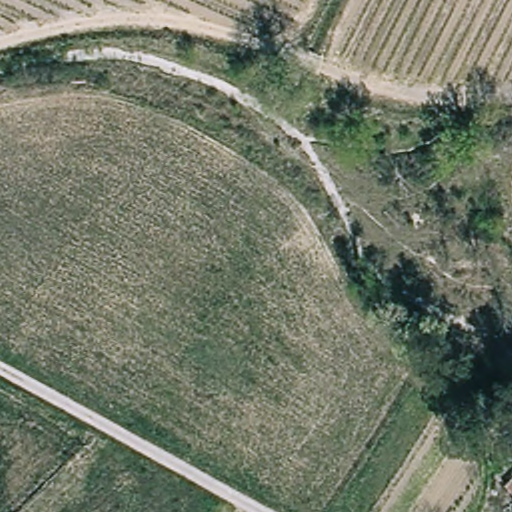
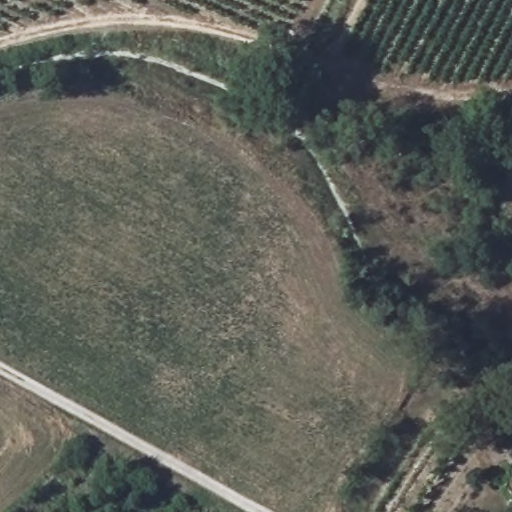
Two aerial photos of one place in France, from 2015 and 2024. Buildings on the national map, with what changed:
unchanged [(512,509),(504,502),(512,494),(512,509)]

